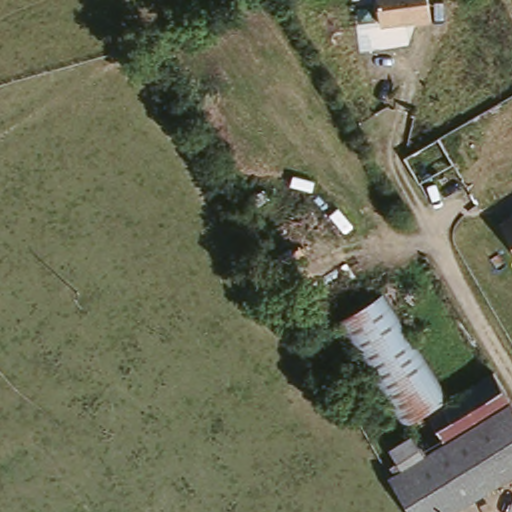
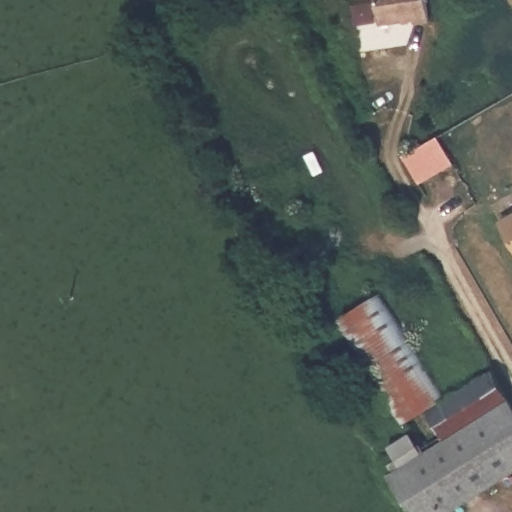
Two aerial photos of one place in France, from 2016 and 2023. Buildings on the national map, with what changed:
unchanged [(429,21),(379,27),(376,0),(427,0),(429,21)]
new [(439,136),(456,164),(421,184),(404,156),(439,136)]
unchanged [(512,216),(512,245),(501,222),(512,216)]
unchanged [(396,427),(334,316),(385,289),(447,399),(396,427)]
unchanged [(454,512),(417,512),(394,474),(403,469),(382,435),(396,427),(447,399),(499,371),(512,394),(512,474),(454,512)]

